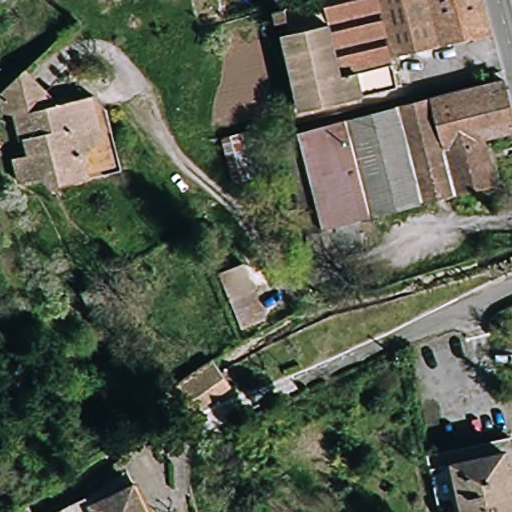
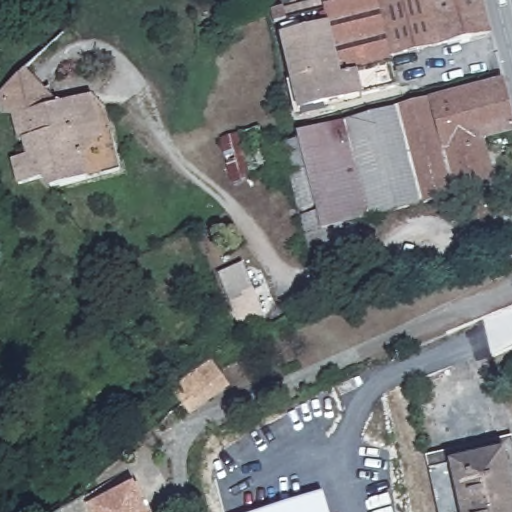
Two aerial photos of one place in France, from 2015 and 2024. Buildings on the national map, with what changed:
unchanged [(499,29),(395,57),(403,84),(309,110),(287,35),(293,33),(289,20),(276,25),(270,9),(285,5),(285,8),(314,0),(490,0),(499,29)]
unchanged [(66,93),(19,106),(10,92),(39,64),(66,93)]
unchanged [(512,114),(512,127),(506,129),(481,135),(493,180),(376,210),(325,224),(319,225),(294,134),(300,132),(502,76),(512,114)]
unchanged [(101,84),(115,125),(98,150),(103,171),(69,180),(60,172),(36,179),(28,152),(35,150),(33,136),(27,135),(19,106),(66,93),(101,84)]
unchanged [(236,180),(225,134),(260,126),(271,171),(236,180)]
unchanged [(376,210),(383,239),(333,251),(325,224),(376,210)]
unchanged [(221,269),(250,262),(265,321),(236,328),(221,269)]
unchanged [(512,262),(512,273),(509,263),(512,262)]
unchanged [(106,297),(91,305),(82,290),(99,281),(106,297)]
unchanged [(196,408),(189,399),(177,384),(218,355),(230,370),(236,379),(196,408)]
unchanged [(431,461),(438,460),(512,445),(512,512),(442,512),(431,461)]
unchanged [(96,495),(136,478),(149,512),(103,512),(96,495)]
new [(323,493),(328,512),(257,512),(323,493)]

